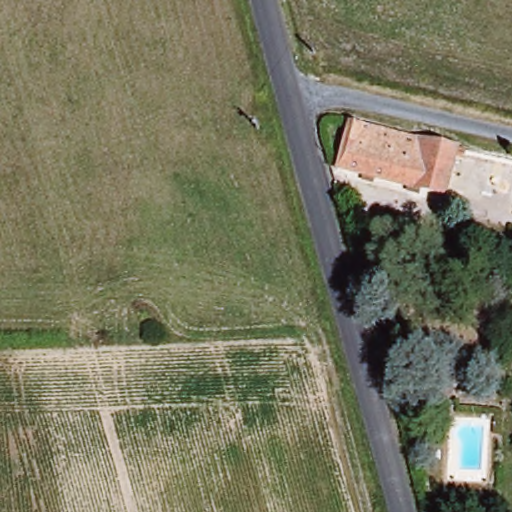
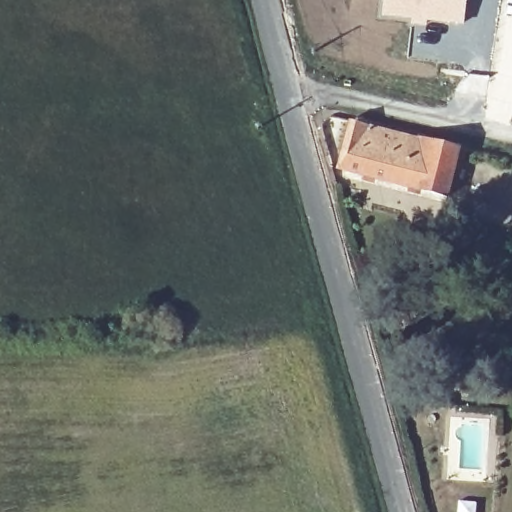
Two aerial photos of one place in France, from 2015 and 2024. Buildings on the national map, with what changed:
new [(382,0),(466,0),(463,25),(426,21),(425,26),(380,16),(382,0)]
unchanged [(458,150),(447,199),(340,174),(348,123),(458,150)]

